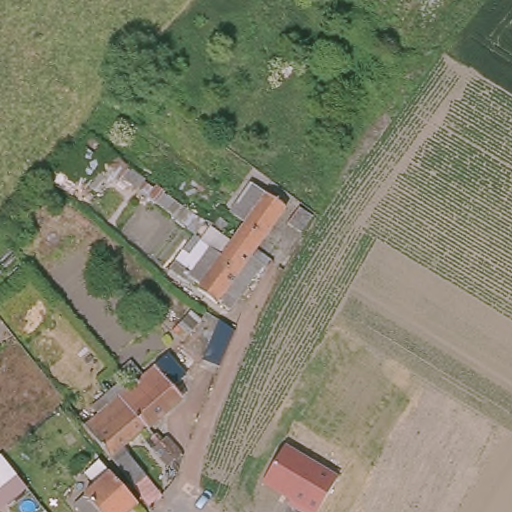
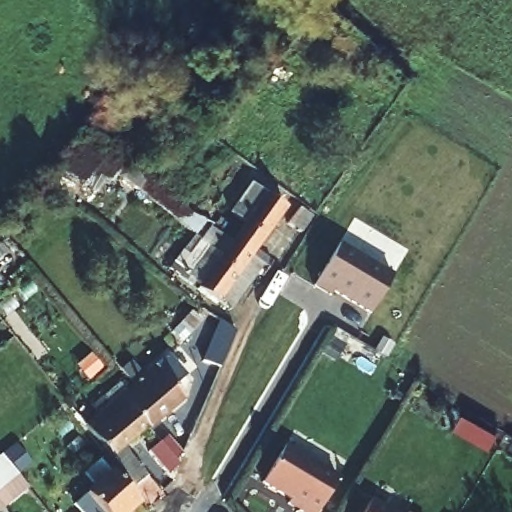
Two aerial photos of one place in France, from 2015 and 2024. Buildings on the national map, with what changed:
unchanged [(225,235),(226,233),(261,187),(279,201),(249,243),(266,254),(261,261),(225,235)]
unchanged [(286,224),(298,207),(311,217),(301,232),(286,224)]
unchanged [(226,323),(203,307),(211,297),(191,282),(193,279),(188,274),(186,278),(180,274),(208,235),(219,243),(225,235),(261,261),(256,268),(251,264),(222,304),(233,313),(226,323)]
new [(369,314),(333,293),(330,297),(311,287),(338,243),(392,274),(369,314)]
unchanged [(84,419),(98,407),(92,399),(119,377),(125,384),(134,377),(154,359),(181,391),(146,421),(122,441),(161,491),(148,501),(84,419)]
unchanged [(166,466),(151,448),(155,445),(149,438),(153,434),(155,433),(161,439),(166,436),(181,453),(174,459),(166,466)]
unchanged [(289,502),(261,485),(284,444),(339,477),(318,512),(299,512),(287,505),(289,502)]
unchanged [(0,455),(0,454),(16,474),(0,486),(0,455)]
unchanged [(136,498),(121,512),(86,512),(74,498),(101,474),(90,461),(98,454),(136,498)]
new [(361,496),(385,512),(351,512),(361,496)]

